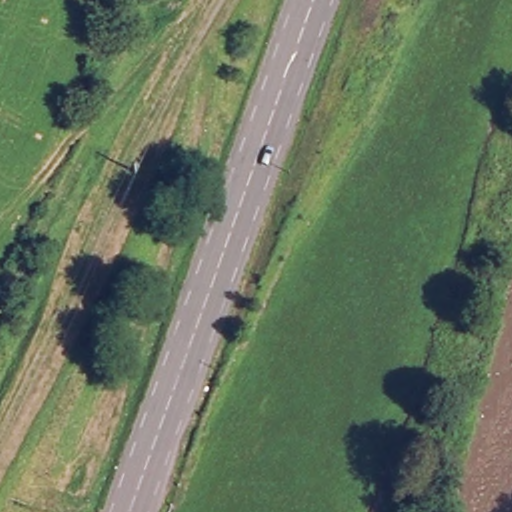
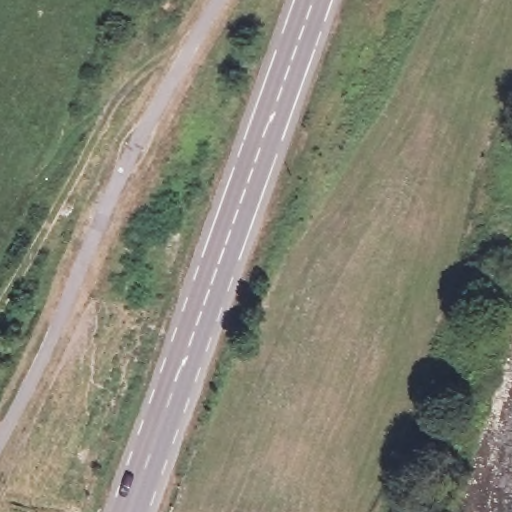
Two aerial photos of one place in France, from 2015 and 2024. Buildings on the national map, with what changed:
[]

